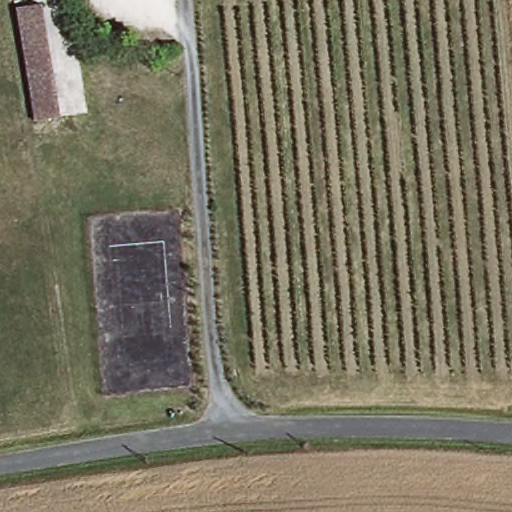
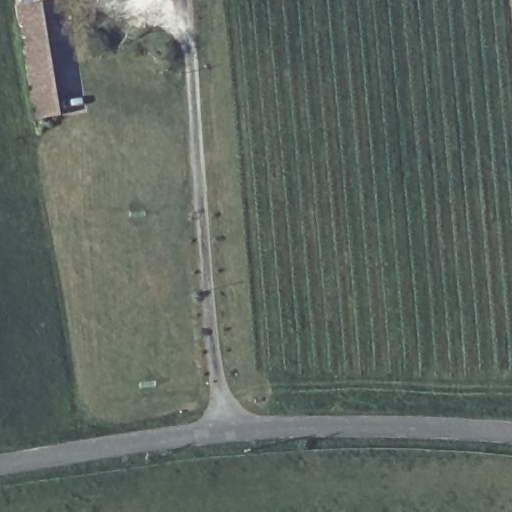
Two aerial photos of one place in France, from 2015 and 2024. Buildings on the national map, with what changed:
unchanged [(29,117),(10,5),(35,1),(53,113),(29,117)]

